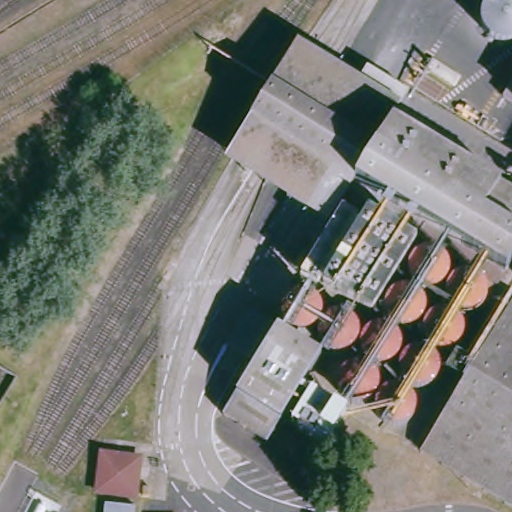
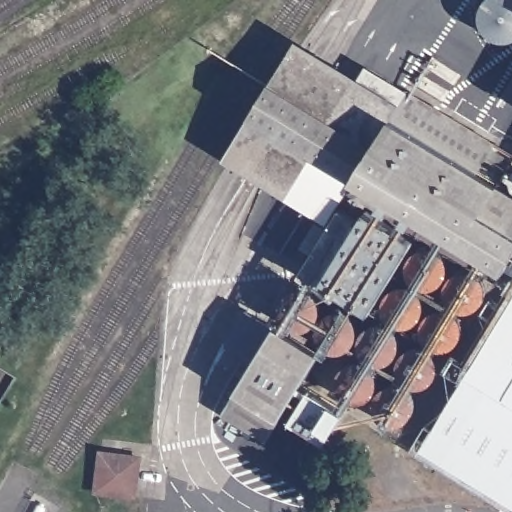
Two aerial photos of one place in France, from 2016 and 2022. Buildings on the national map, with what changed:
unchanged [(228,159),(299,42),(345,70),(272,186),(228,159)]
unchanged [(345,70),(400,104),(353,182),(335,170),(310,210),(272,186),(345,70)]
unchanged [(400,104),(406,91),(512,155),(512,264),(499,285),(415,230),(349,190),(353,182),(400,104)]
unchanged [(393,226),(350,298),(301,269),(343,199),(393,226)]
unchanged [(437,290),(433,290),(430,290),(426,290),(422,288),(420,286),(416,283),(415,280),(413,276),(412,273),(413,269),(413,265),(415,262),(417,258),(420,256),(423,254),(427,252),(431,252),(435,252),(438,253),(441,255),(445,257),(447,260),(450,263),(451,266),(451,270),(451,274),(450,277),(449,281),(446,284),(444,287),(440,289),(437,290)]
unchanged [(473,312),(470,313),(466,312),(462,312),(459,310),(456,308),(453,305),(451,302),(450,298),(449,295),(450,291),(450,287),(452,284),(454,280),(456,278),(460,276),(463,275),(467,274),(471,275),(475,275),(478,276),(481,279),(484,281),(486,285),(487,288),(488,292),(487,296),(487,300),(485,303),(483,306),(480,309),(477,311),(473,312)]
unchanged [(414,325),(410,325),(406,325),(403,324),(400,322),(396,320),(394,317),(392,315),(390,311),(390,307),(390,303),(391,300),(392,296),(395,293),(397,290),(400,288),(404,287),(408,286),(411,286),(415,287),(419,289),(422,291),(425,294),(426,297),(428,301),(428,305),(428,308),(427,312),(426,315),(423,318),(421,321),(417,323),(414,325)]
unchanged [(306,326),(302,327),(299,326),(295,325),(292,323),(290,321),(287,318),(285,315),(285,312),(285,308),(285,305),(285,301),(287,298),(290,295),(292,293),(295,291),(299,290),(303,290),(306,290),(310,291),(313,293),(316,295),(318,298),(320,301),(321,305),(321,308),(321,312),(320,315),(318,318),(316,321),(313,323),(310,325),(306,326)]
unchanged [(453,348),(449,349),(445,348),(441,348),(438,346),(435,344),(432,341),(430,338),(429,335),(428,331),(428,327),(430,323),(431,320),(433,316),(436,314),(439,312),(443,311),(446,310),(450,310),(454,311),(457,312),(460,315),(463,317),(465,321),(466,325),(467,328),(467,332),(466,335),(465,339),(462,342),(460,345),(456,347),(453,348)]
unchanged [(226,415),(256,364),(230,348),(252,312),(321,353),(270,440),(226,415)]
unchanged [(345,348),(340,349),(337,348),(333,347),(330,346),(327,343),(325,341),(323,337),(322,334),(322,330),(322,327),(323,323),(325,320),(327,317),(330,315),(333,313),(337,312),(341,312),(345,312),(348,313),(351,315),(354,317),(356,320),(358,323),(359,327),(360,330),(359,334),(358,337),(356,341),(354,343),(351,346),(348,347),(345,348)]
unchanged [(425,455),(512,313),(512,508),(425,455)]
unchanged [(388,368),(385,368),(381,368),(377,368),(375,366),(371,365),(369,362),(367,360),(366,356),(365,353),(365,350),(366,346),(367,343),(369,340),(371,337),(375,335),(377,335),(381,333),(385,333),(387,335),(391,335),(394,337),(396,340),(398,342),(400,346),(400,350),(400,352),(400,356),(398,360),(396,362),(394,365),(391,366),(388,368)]
unchanged [(422,385),(419,385),(415,385),(412,384),(409,382),(406,380),(403,377),(402,374),(401,370),(400,366),(401,363),(402,360),(403,356),(406,353),(409,351),(412,350),(415,348),(419,348),(422,348),(426,350),(430,351),(432,353),(435,356),(436,360),(437,363),(437,366),(437,370),(436,374),(435,377),(432,380),(430,382),(426,384),(422,385)]
unchanged [(363,406),(360,406),(356,406),(353,406),(350,405),(347,403),(345,400),(342,397),(341,395),(340,391),(340,387),(341,384),(342,381),(345,378),(346,375),(350,373),(352,372),(356,371),(360,371),(363,372),(366,373),(369,375),(371,378),(373,380),(375,384),(375,387),(375,391),(375,394),(373,397),(371,400),(369,402),(366,405),(363,406)]
unchanged [(399,425),(395,426),(392,425),(388,425),(385,423),(382,420),(380,417),(378,415),(377,411),(377,407),(377,403),(378,400),(380,397),(382,395),(385,392),(388,390),(392,389),(395,389),(399,389),(402,390),(406,392),(408,395),(411,397),(412,400),(413,404),(414,407),(414,411),(412,415),(411,418),(408,420),(406,423),(402,425),(399,425)]
unchanged [(346,411),(329,441),(295,421),(312,392),(346,411)]
unchanged [(128,458),(125,495),(90,490),(93,453),(128,458)]

